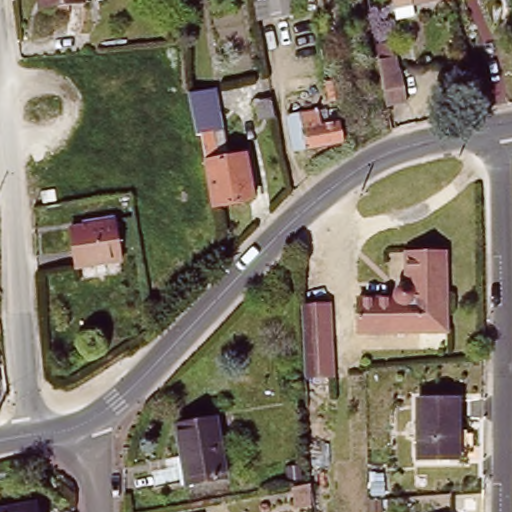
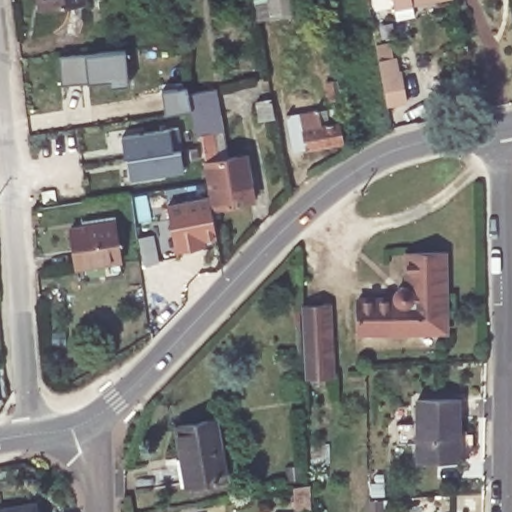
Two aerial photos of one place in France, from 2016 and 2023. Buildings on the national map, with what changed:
unchanged [(86,7),(46,13),(40,13),(38,0),(85,0),(86,7)]
unchanged [(268,25),(263,0),(285,0),(289,21),(276,23),(268,25)]
demolished [(387,28),(376,30),(370,0),(381,0),(387,28)]
unchanged [(412,6),(415,23),(395,25),(390,0),(451,0),(412,6)]
new [(128,83),(110,85),(110,78),(88,81),(62,84),(60,56),(86,53),(125,49),(128,83)]
unchanged [(394,57),(398,73),(402,72),(407,101),(389,104),(381,60),(394,57)]
unchanged [(343,100),(330,102),(328,86),(340,84),(343,100)]
new [(168,113),(164,89),(189,85),(191,94),(193,108),(168,113)]
unchanged [(218,88),(226,132),(203,136),(198,136),(191,94),(218,88)]
unchanged [(278,118),(259,120),(256,102),(275,99),(278,118)]
unchanged [(293,117),(306,115),(326,111),(327,116),(332,115),(334,126),(347,123),(350,142),(312,149),(299,150),(293,117)]
new [(124,135),(169,128),(173,150),(181,148),(185,170),(132,177),(124,135)]
unchanged [(230,159),(248,156),(255,201),(215,208),(203,136),(226,132),(230,159)]
unchanged [(44,192),(56,190),(58,204),(45,205),(44,192)]
new [(215,208),(220,236),(208,239),(209,244),(179,249),(171,203),(213,194),(215,208)]
demolished [(160,221),(197,215),(200,230),(162,237),(160,221)]
unchanged [(71,229),(88,227),(116,222),(122,261),(92,266),(77,268),(71,229)]
unchanged [(363,301),(382,302),(397,300),(398,293),(401,289),(406,286),(412,285),(411,255),(449,255),(449,333),(382,335),(364,334),(363,301)]
unchanged [(326,308),(328,378),(299,380),(296,310),(326,308)]
unchanged [(419,460),(419,400),(461,401),(460,460),(419,460)]
unchanged [(172,426),(212,419),(223,478),(183,486),(172,426)]
unchanged [(310,485),(312,508),(295,509),(294,489),(310,485)]
unchanged [(39,512),(0,512),(0,510),(38,504),(39,512)]

